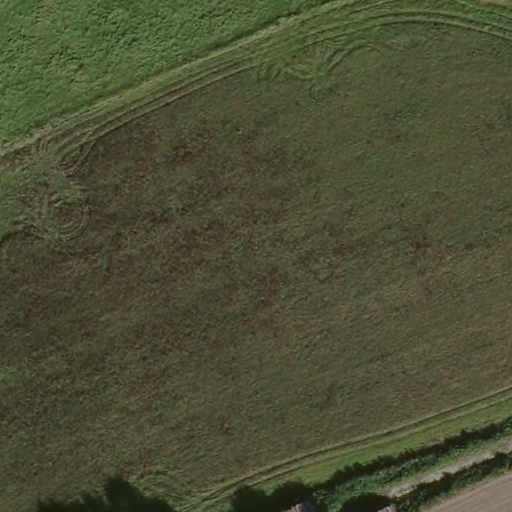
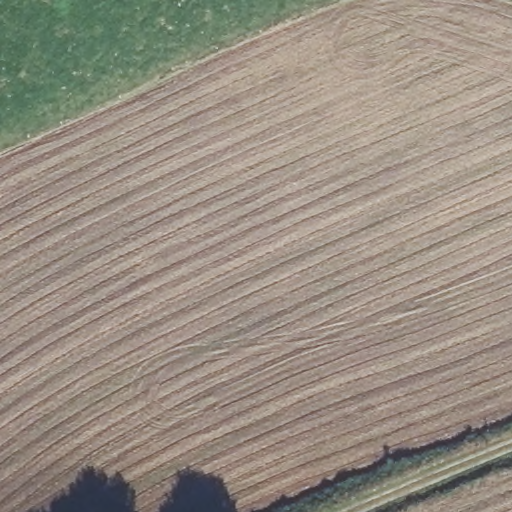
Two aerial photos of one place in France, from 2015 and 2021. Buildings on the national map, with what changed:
[]

